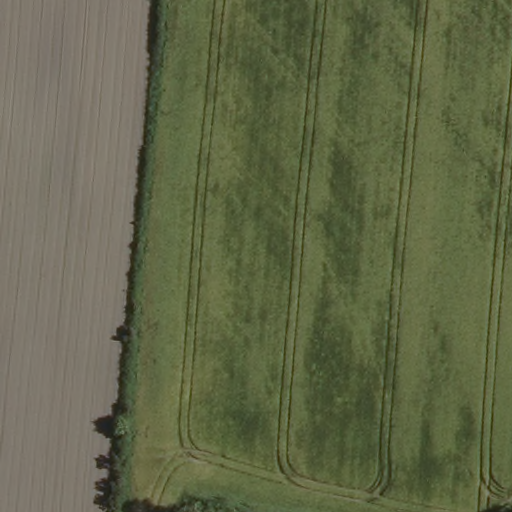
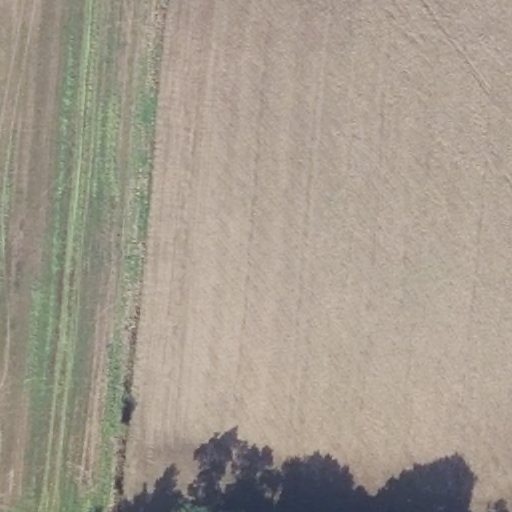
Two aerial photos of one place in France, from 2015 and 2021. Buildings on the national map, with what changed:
[]

